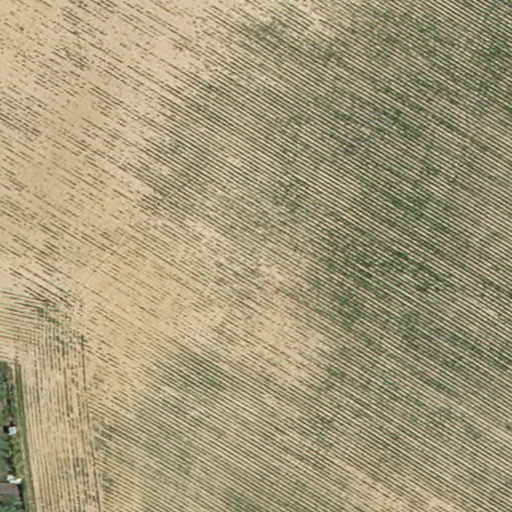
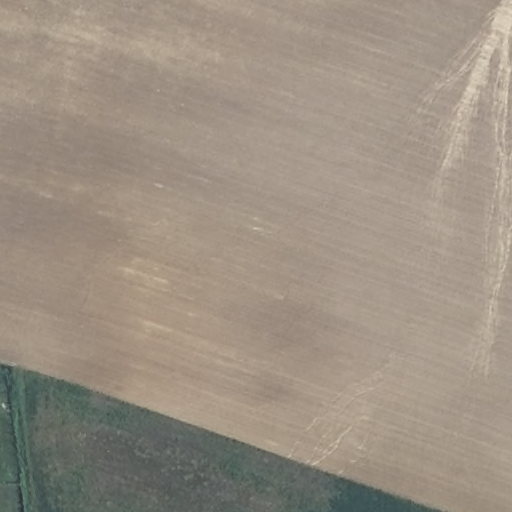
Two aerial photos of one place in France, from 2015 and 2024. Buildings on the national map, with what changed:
[]

